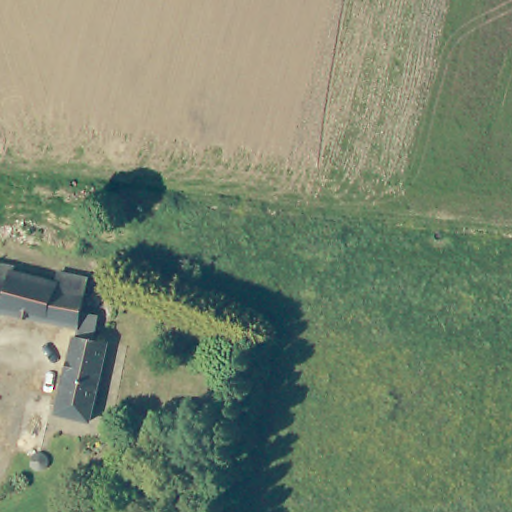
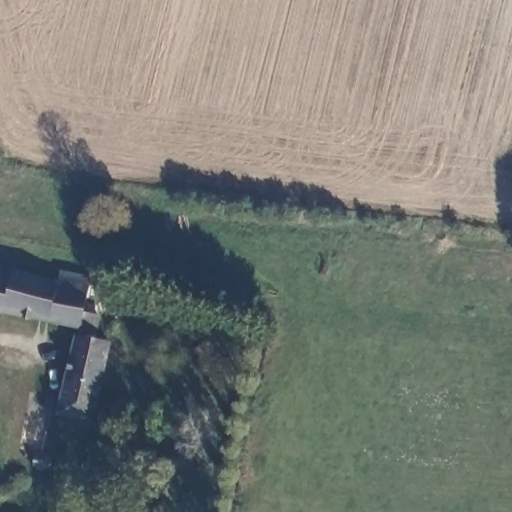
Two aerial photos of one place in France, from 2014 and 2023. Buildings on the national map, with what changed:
unchanged [(16,269),(60,279),(62,270),(93,277),(85,311),(100,314),(95,338),(109,341),(91,421),(59,413),(77,329),(0,312),(0,262),(17,266),(16,269)]
unchanged [(45,469),(42,470),(41,470),(40,470),(39,470),(38,469),(36,469),(36,468),(35,468),(34,467),(33,466),(32,464),(32,462),(32,460),(32,459),(33,458),(33,457),(34,456),(36,454),(37,453),(38,452),(39,452),(41,452),(42,452),(43,452),(44,452),(45,452),(46,452),(46,453),(47,453),(48,454),(49,454),(49,455),(50,456),(50,458),(51,460),(51,461),(51,462),(50,463),(50,464),(49,465),(49,466),(48,467),(47,468),(46,469),(45,469)]

